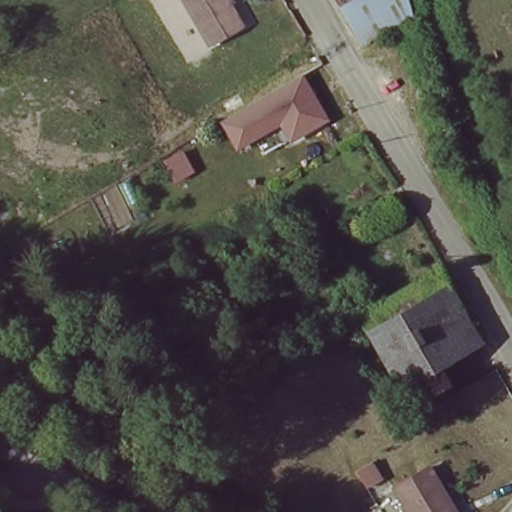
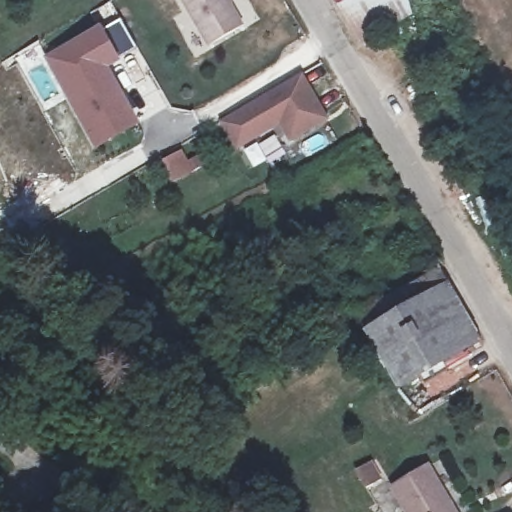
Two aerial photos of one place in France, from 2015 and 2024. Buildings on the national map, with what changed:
unchanged [(237,27),(207,44),(180,0),(222,0),(237,27)]
unchanged [(366,47),(354,23),(348,11),(353,9),(348,0),(409,0),(416,21),(366,47)]
new [(140,124),(95,151),(46,58),(102,26),(121,63),(111,70),(140,124)]
new [(269,117),(274,125),(290,116),(274,88),(303,74),(330,121),(290,143),(281,126),(237,151),(229,138),(269,117)]
unchanged [(274,88),(290,116),(274,125),(269,117),(229,138),(219,121),(274,88)]
unchanged [(436,395),(425,377),(402,390),(356,313),(443,265),(487,339),(443,367),(454,385),(436,395)]
unchanged [(385,482),(364,494),(354,474),(373,464),(385,482)]
unchanged [(454,512),(406,512),(392,489),(426,467),(454,512)]

